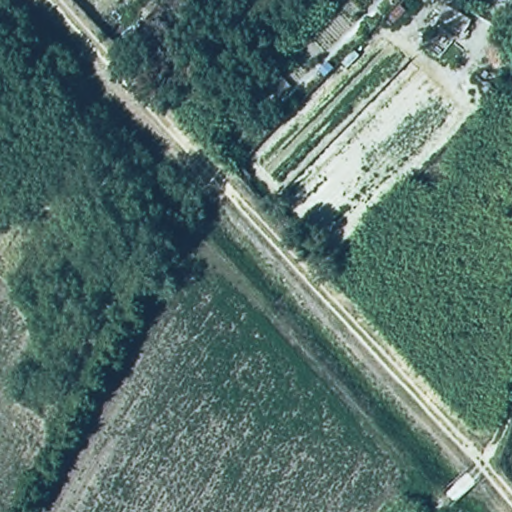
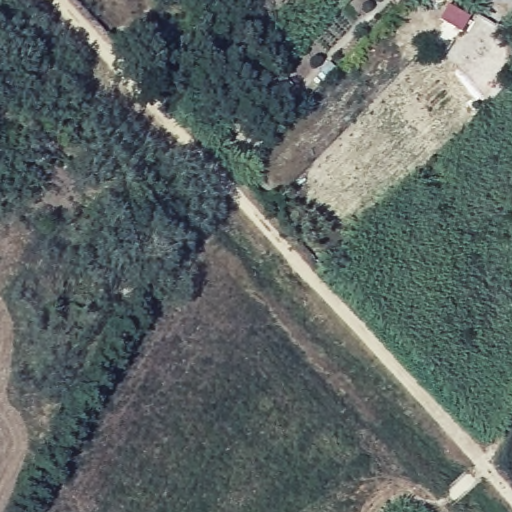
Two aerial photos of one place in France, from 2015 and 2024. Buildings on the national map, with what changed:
unchanged [(446,0),(483,25),(473,39),(438,15),(445,0),(446,0)]

